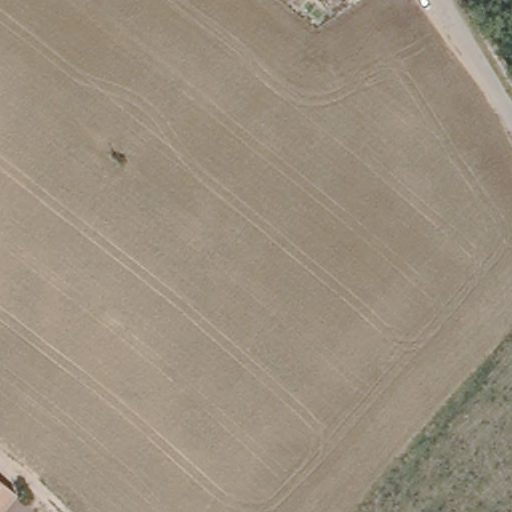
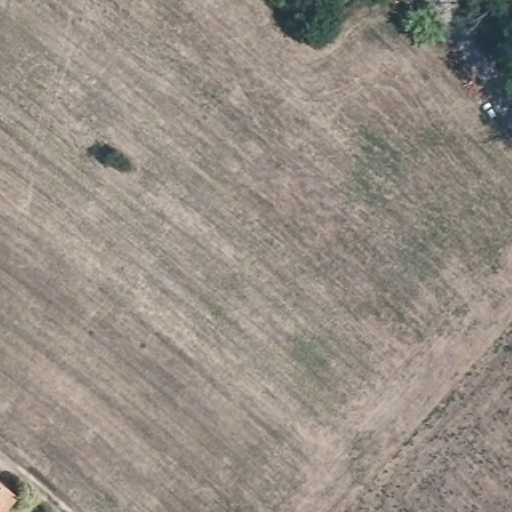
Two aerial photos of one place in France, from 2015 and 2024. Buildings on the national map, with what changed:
unchanged [(0,512),(0,482),(15,494),(0,512)]

